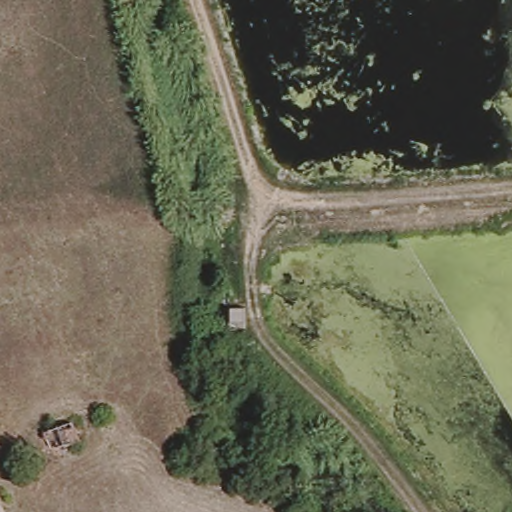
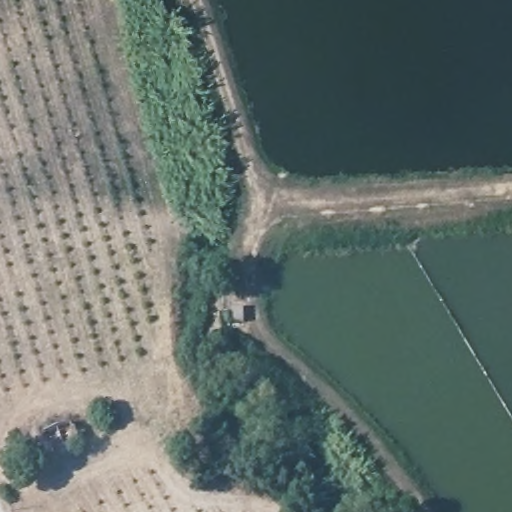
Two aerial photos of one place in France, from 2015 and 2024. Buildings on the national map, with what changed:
unchanged [(81,442),(58,450),(50,429),(71,421),(81,442)]

